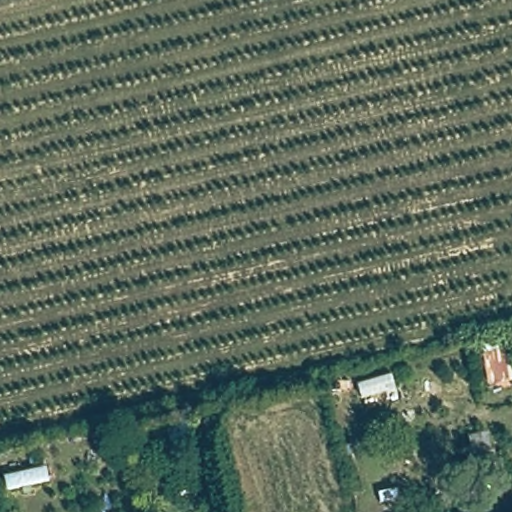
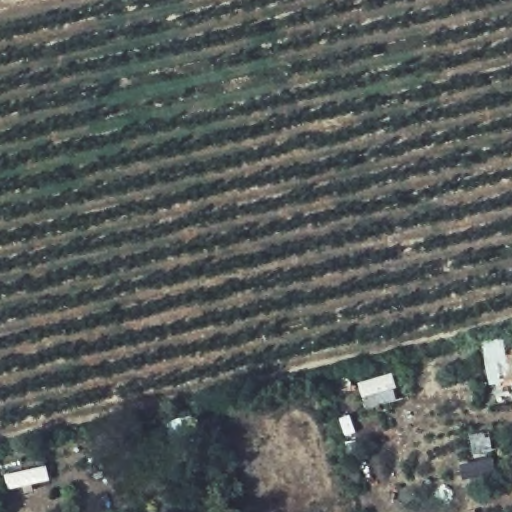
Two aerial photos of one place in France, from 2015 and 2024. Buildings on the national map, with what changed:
unchanged [(501,337),(512,396),(489,401),(478,346),(501,337)]

